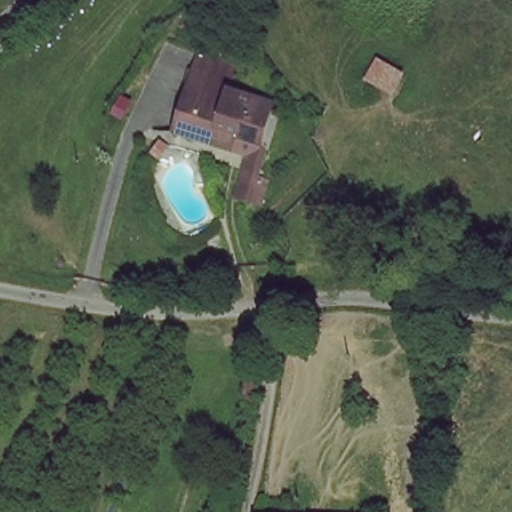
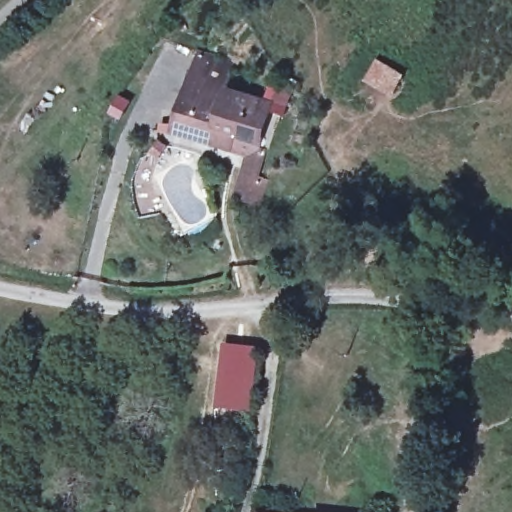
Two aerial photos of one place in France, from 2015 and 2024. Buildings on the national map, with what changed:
unchanged [(404,77),(390,99),(365,82),(375,59),(404,77)]
unchanged [(251,99),(243,139),(222,136),(219,145),(178,137),(188,82),(191,71),(192,62),(232,69),(230,75),(227,88),(253,92),(251,99)]
unchanged [(243,139),(251,99),(275,103),(256,209),(232,204),(243,139)]
new [(222,345),(260,350),(253,415),(213,411),(222,345)]

